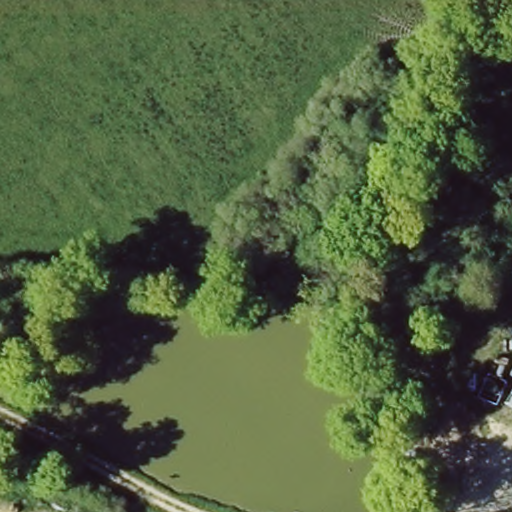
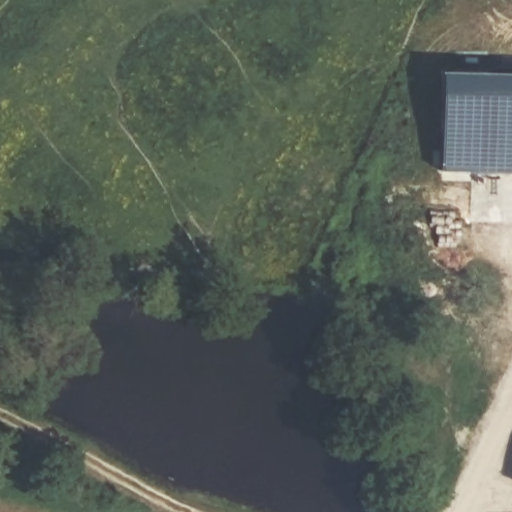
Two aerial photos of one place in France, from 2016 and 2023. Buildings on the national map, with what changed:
new [(442,72),(512,74),(512,173),(438,170),(442,72)]

